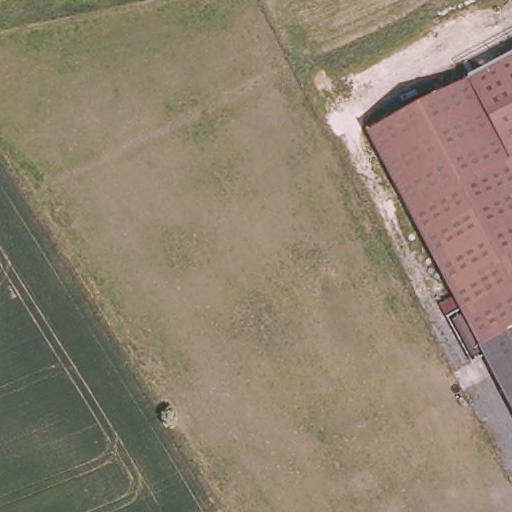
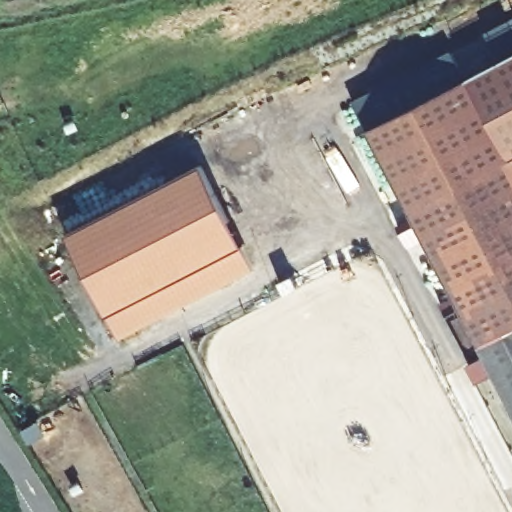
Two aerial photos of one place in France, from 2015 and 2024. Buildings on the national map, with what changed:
unchanged [(471,73),(512,52),(512,152),(471,73)]
unchanged [(412,205),(372,125),(471,73),(512,152),(512,397),(412,205)]
new [(250,267),(110,340),(59,241),(197,163),(250,267)]

